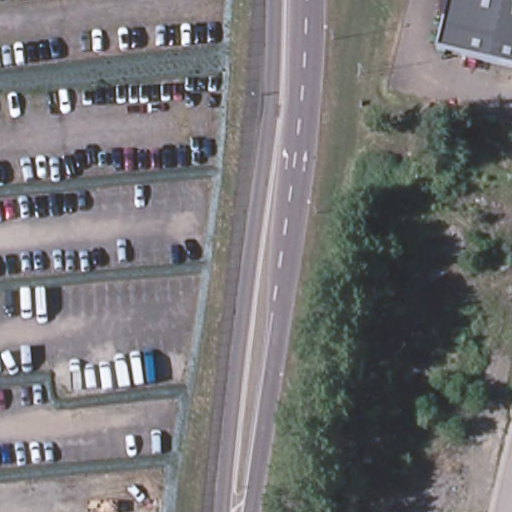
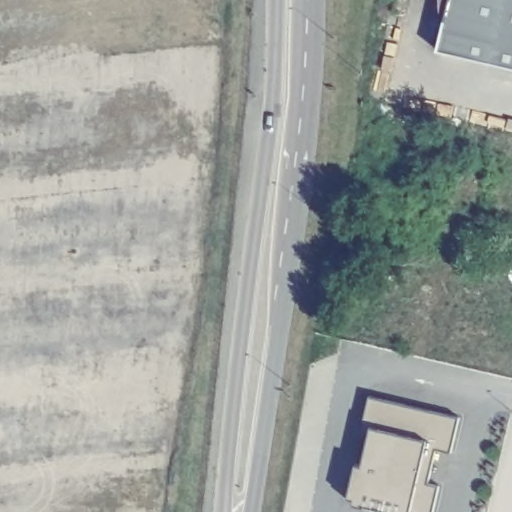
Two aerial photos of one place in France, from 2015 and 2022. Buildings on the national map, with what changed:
unchanged [(449,0),(512,0),(512,70),(437,52),(449,0)]
demolished [(250,107),(261,107),(260,131),(248,131),(250,107)]
new [(457,418),(450,452),(435,449),(428,486),(438,488),(432,512),(370,512),(357,508),(359,503),(350,501),(358,471),(365,472),(375,433),(362,431),(371,397),(457,418)]

